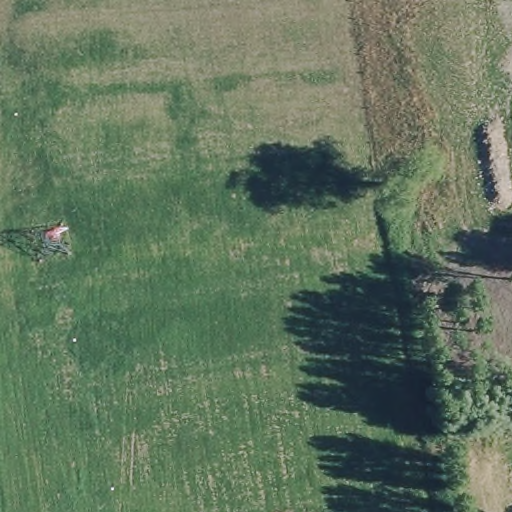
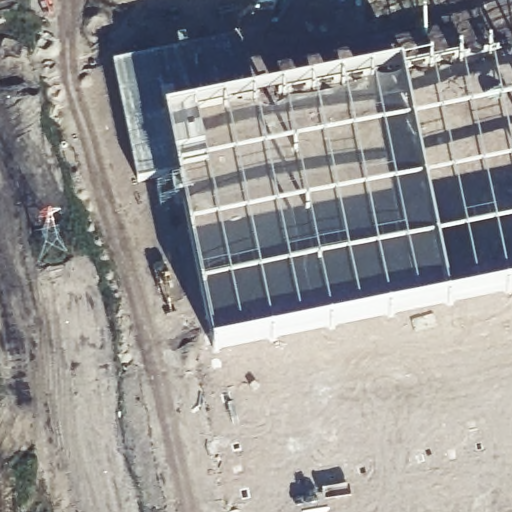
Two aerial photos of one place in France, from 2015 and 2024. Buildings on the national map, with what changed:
new [(177,177),(134,185),(110,66),(237,41),(248,96),(512,45),(512,290),(213,350),(177,177)]

